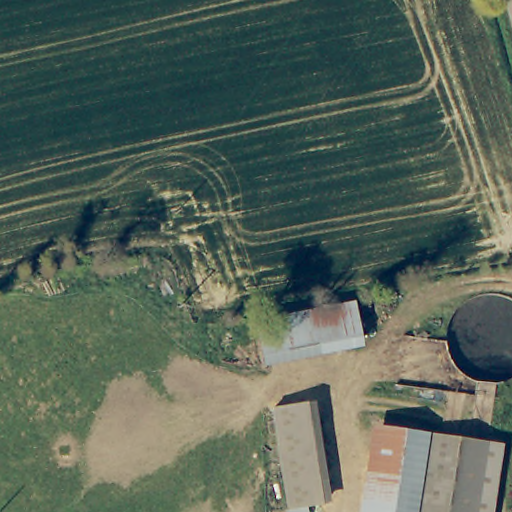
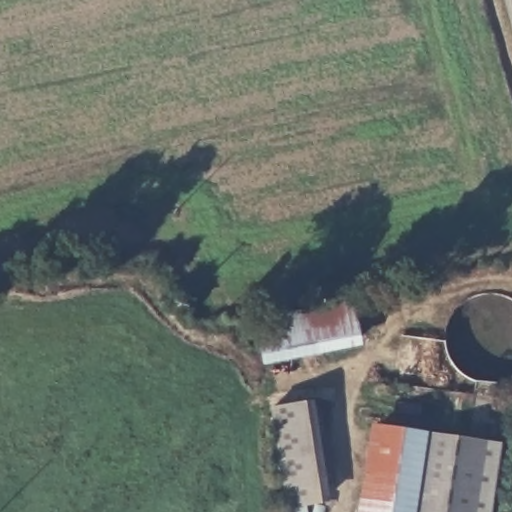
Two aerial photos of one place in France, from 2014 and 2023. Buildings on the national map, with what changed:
unchanged [(363,348),(265,365),(258,322),(355,305),(363,348)]
unchanged [(326,502),(309,505),(310,512),(291,512),(274,404),(310,399),(326,502)]
unchanged [(422,512),(367,512),(384,425),(437,435),(422,512)]
unchanged [(500,447),(487,512),(422,512),(437,435),(500,447)]

